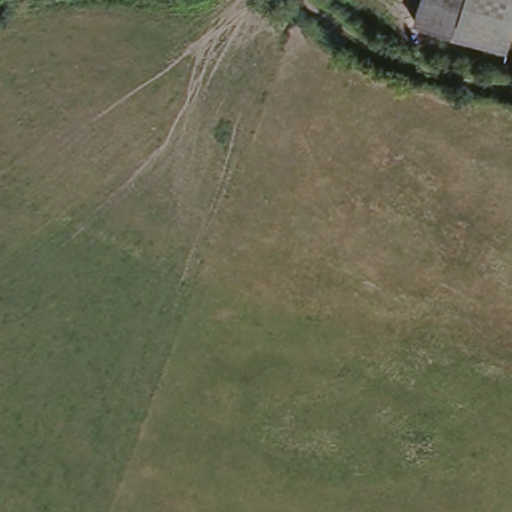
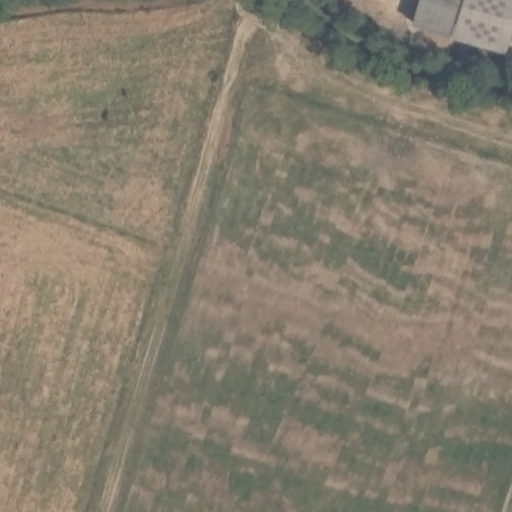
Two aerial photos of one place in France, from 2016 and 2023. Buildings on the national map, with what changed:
unchanged [(501,51),(416,19),(422,0),(436,0),(509,25),(501,51)]
unchanged [(436,0),(512,0),(512,17),(509,25),(436,0)]

